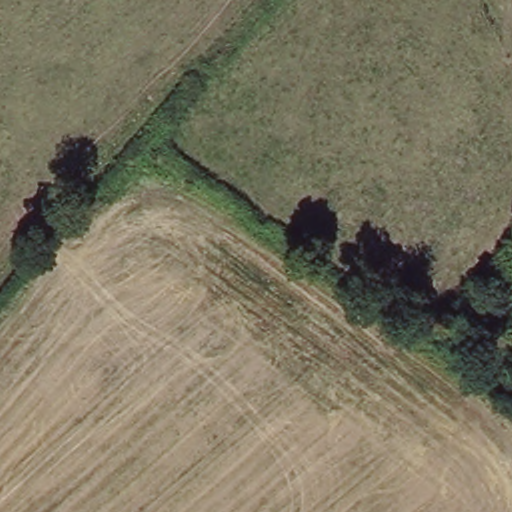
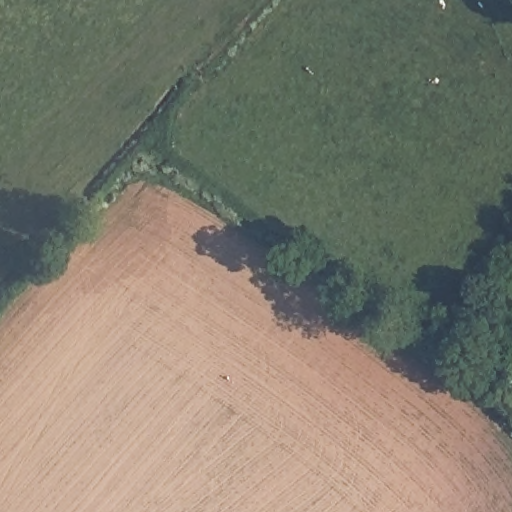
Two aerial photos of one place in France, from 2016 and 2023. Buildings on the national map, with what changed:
[]

